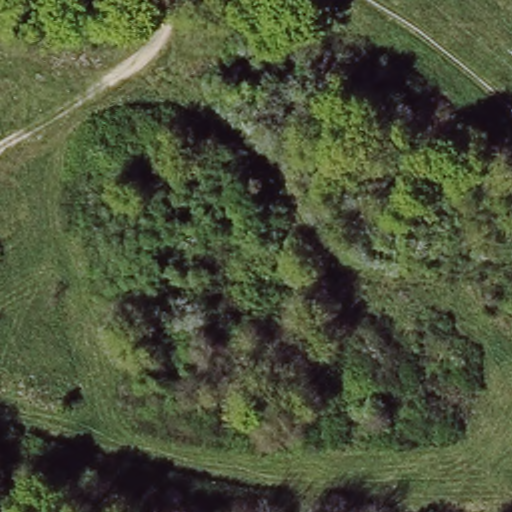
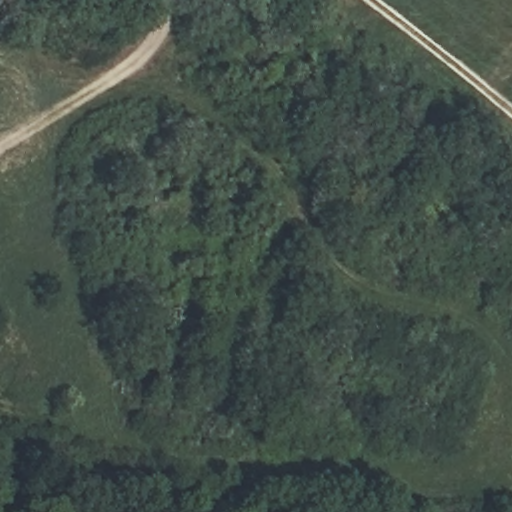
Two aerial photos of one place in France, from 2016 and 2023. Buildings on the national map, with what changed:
unchanged [(211,361),(211,353),(170,356),(169,345),(151,347),(148,317),(171,316),(170,307),(248,302),(252,358),(211,361)]

